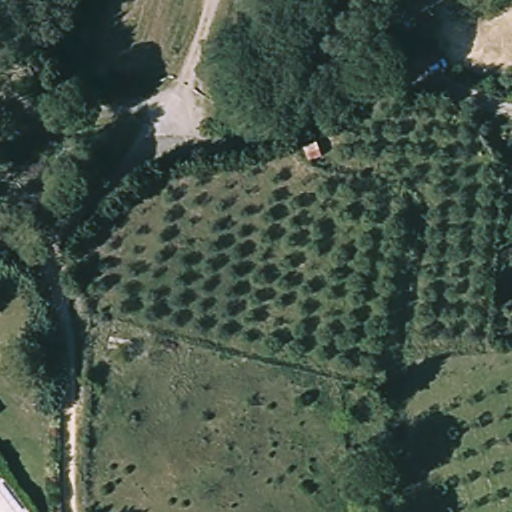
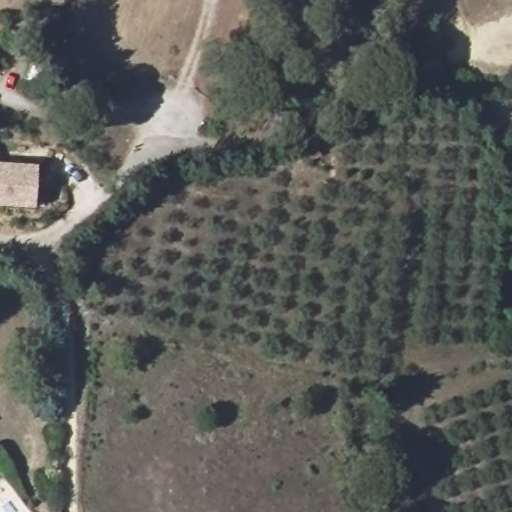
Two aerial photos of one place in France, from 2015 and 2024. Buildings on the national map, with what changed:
new [(37,165),(33,207),(0,205),(0,162),(37,165)]

